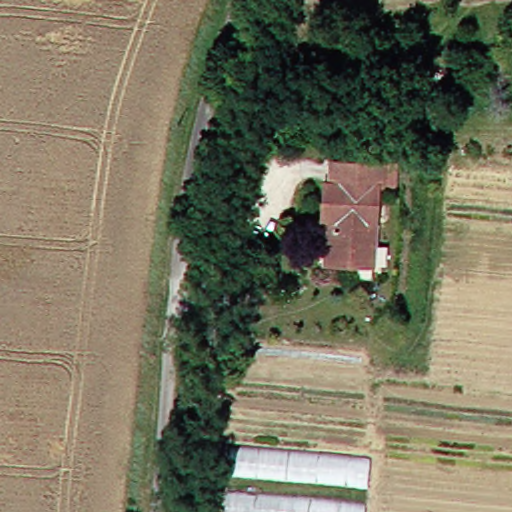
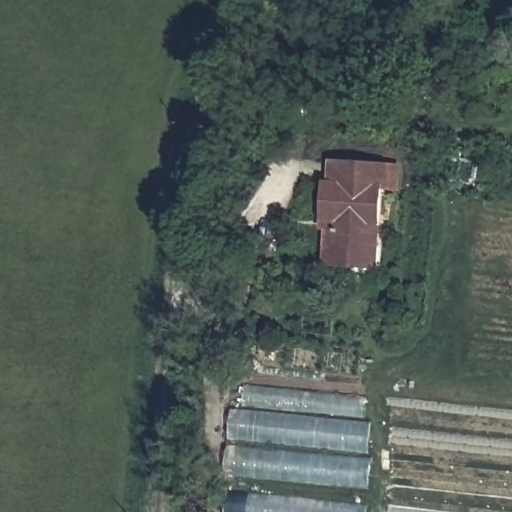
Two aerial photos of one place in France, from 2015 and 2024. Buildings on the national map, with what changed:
unchanged [(386,189),(381,187),(378,226),(376,270),(322,266),(323,230),(328,160),(387,163),(386,189)]
new [(244,383),(366,396),(364,417),(244,406),(244,383)]
new [(367,422),(366,450),(235,436),(237,410),(367,422)]
unchanged [(373,461),(372,489),(229,478),(232,450),(373,461)]
unchanged [(370,512),(230,512),(230,494),(371,506),(370,512)]

